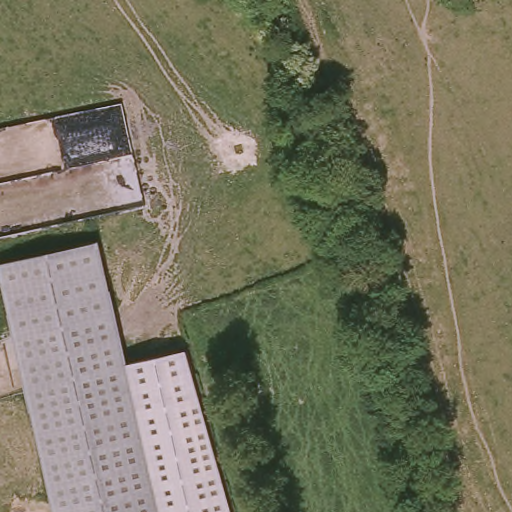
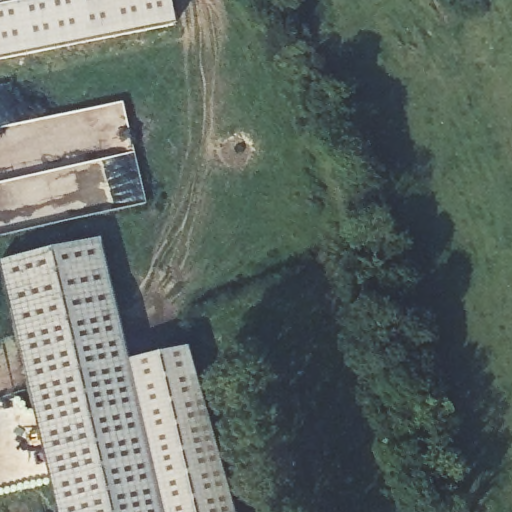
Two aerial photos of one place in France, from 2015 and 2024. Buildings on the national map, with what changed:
new [(169,0),(174,26),(0,61),(0,0),(169,0)]
unchanged [(109,237),(161,512),(58,512),(10,256),(109,237)]
unchanged [(233,512),(161,512),(133,362),(187,348),(233,512)]

